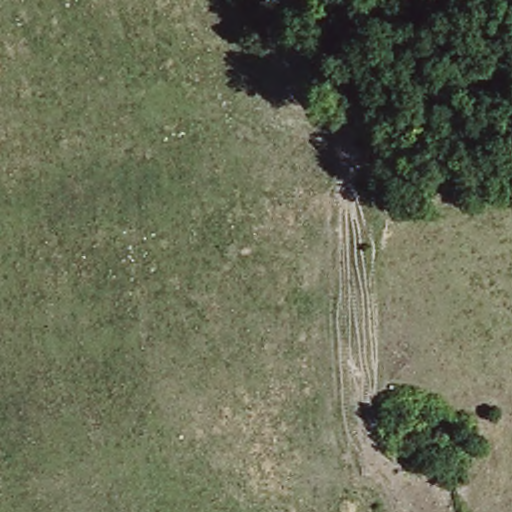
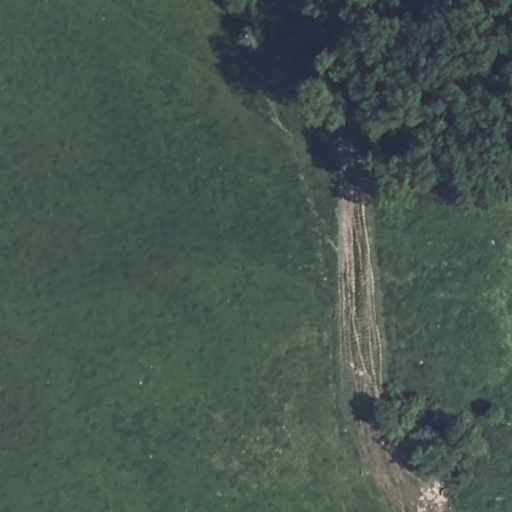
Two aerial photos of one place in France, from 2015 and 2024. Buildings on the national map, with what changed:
[]

